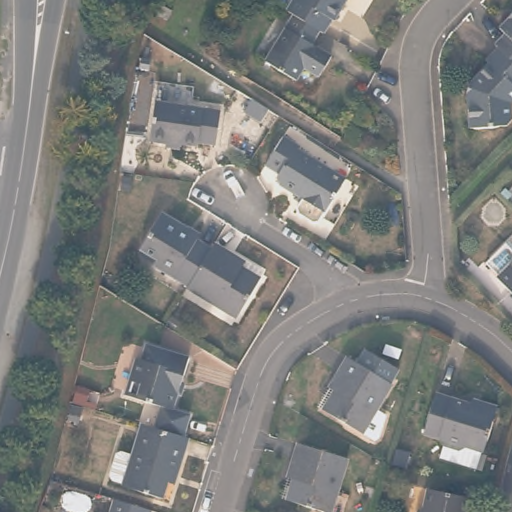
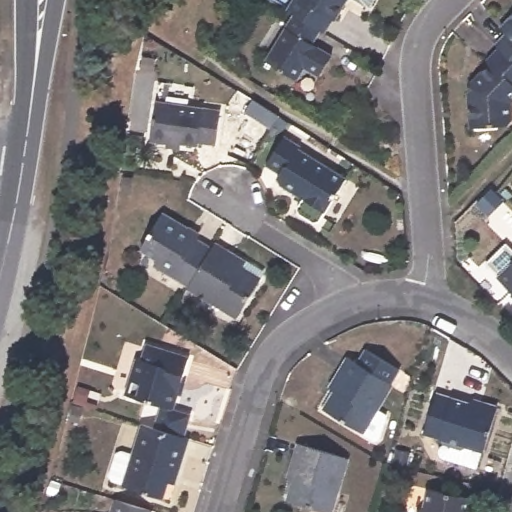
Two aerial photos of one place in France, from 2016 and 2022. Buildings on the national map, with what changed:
unchanged [(340,2),(330,19),(328,17),(319,31),(315,28),(290,12),(283,8),(289,0),(340,0),(338,2),(340,2)]
unchanged [(169,18),(157,11),(162,2),(174,9),(169,18)]
unchanged [(495,39),(505,28),(499,22),(512,9),(512,55),(499,42),(495,39)]
unchanged [(327,54),(314,75),(299,66),(292,79),(262,60),(290,12),(315,28),(307,42),(327,54)]
unchanged [(512,95),(510,97),(511,115),(506,120),(470,123),(468,87),(470,87),(473,79),(471,77),(489,58),(486,55),(499,42),(512,55),(512,95)]
unchanged [(272,127),(264,122),(246,112),(254,99),(272,110),(280,115),(272,127)]
unchanged [(212,150),(195,147),(195,151),(179,149),(178,151),(148,146),(154,106),(218,115),(212,150)]
unchanged [(301,148),(348,177),(322,219),(315,222),(300,213),(298,207),(305,197),(277,181),(282,172),(269,165),(287,136),(302,145),(301,148)]
unchanged [(158,262),(161,256),(145,245),(167,210),(192,225),(190,230),(216,246),(193,284),(158,262)]
unchanged [(216,246),(219,241),(248,260),(245,264),(262,275),(239,313),(193,284),(216,246)]
unchanged [(512,262),(512,293),(496,277),(512,262)]
unchanged [(158,409),(122,398),(134,362),(138,363),(143,347),(187,362),(170,412),(187,418),(181,439),(152,430),(158,409)]
unchanged [(334,392),(328,388),(348,357),(357,363),(366,350),(400,371),(392,385),(393,386),(376,410),(385,416),(378,438),(374,442),(361,433),(323,410),(334,392)]
unchanged [(87,400),(77,397),(81,386),(91,388),(87,400)]
unchanged [(473,401),(497,408),(484,452),(482,452),(477,470),(440,459),(444,447),(439,438),(423,434),(436,395),(467,405),(473,401)]
unchanged [(84,407),(80,421),(71,417),(75,403),(84,407)]
unchanged [(166,484),(161,500),(122,487),(123,485),(113,482),(109,477),(116,455),(123,453),(131,456),(140,427),(152,430),(181,439),(187,441),(177,475),(174,487),(166,484)]
unchanged [(331,512),(324,512),(287,501),(293,480),(287,478),(298,444),(346,459),(331,512)]
unchanged [(470,512),(418,512),(419,509),(426,506),(429,490),(472,498),(470,512)]
unchanged [(113,497),(148,507),(147,512),(108,512),(113,497)]

